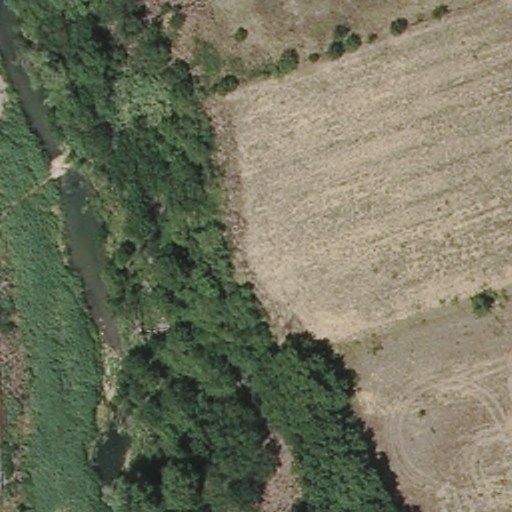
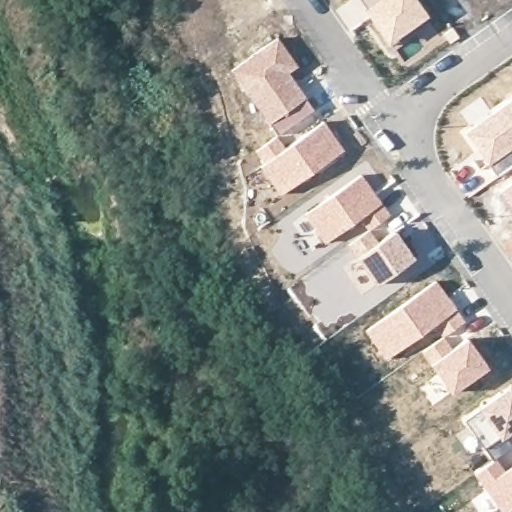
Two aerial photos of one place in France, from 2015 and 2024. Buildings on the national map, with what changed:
new [(388,46),(368,18),(358,0),(416,0),(428,15),(388,46)]
new [(277,36),(298,66),(290,72),(316,112),(279,137),(230,71),(277,36)]
new [(469,125),(491,110),(512,96),(512,165),(495,177),(461,131),(469,125)]
new [(277,135),(285,146),(323,121),(344,150),(280,195),(255,152),(277,135)]
new [(361,173),(390,215),(382,221),(365,230),(358,220),(322,244),(302,215),(361,173)]
new [(498,195),(499,191),(512,182),(512,215),(498,195)]
new [(390,232),(394,229),(414,257),(375,284),(356,257),(390,232)]
new [(436,280),(465,322),(453,330),(445,335),(437,324),(386,360),(365,331),(436,280)]
new [(461,340),(466,336),(488,367),(448,393),(429,363),(461,340)]
new [(510,381),(512,384),(512,432),(500,440),(499,438),(484,447),(463,418),(478,407),(510,381)]
new [(496,457),(504,468),(512,463),(512,508),(507,512),(501,512),(473,473),(496,457)]

